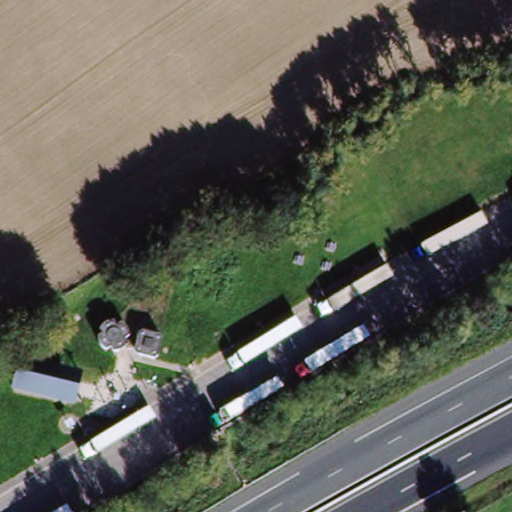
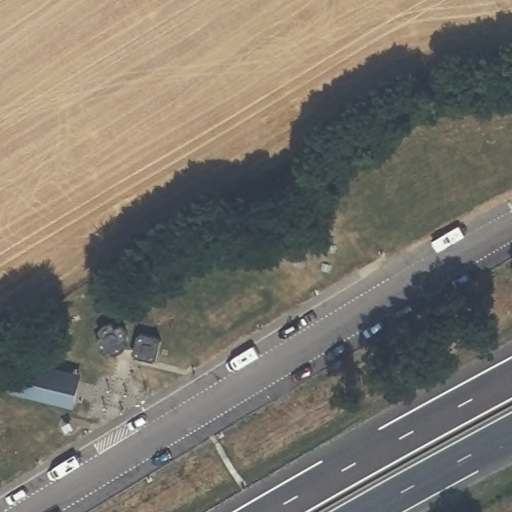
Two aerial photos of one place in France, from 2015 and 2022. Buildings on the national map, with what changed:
unchanged [(122,322),(125,338),(105,351),(93,335),(103,320),(122,322)]
unchanged [(139,330),(159,335),(155,355),(131,353),(139,330)]
unchanged [(15,361),(78,370),(70,401),(8,392),(15,361)]

